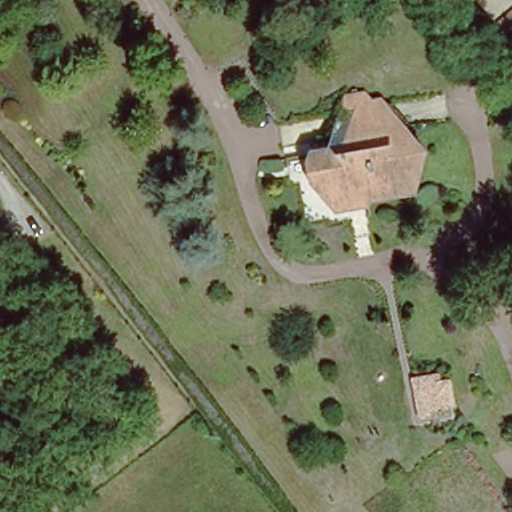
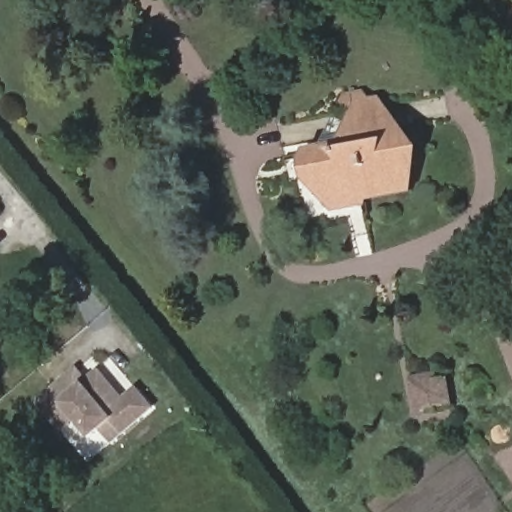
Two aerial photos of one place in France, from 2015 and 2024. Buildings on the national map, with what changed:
unchanged [(512,23),(505,30),(497,21),(512,9),(512,23)]
unchanged [(326,170),(315,173),(310,149),(330,145),(345,100),(380,93),(404,119),(410,147),(413,146),(417,162),(413,163),(418,183),(398,187),(399,190),(372,195),(373,197),(339,203),(326,170)]
new [(104,431),(92,440),(76,420),(61,432),(36,402),(79,366),(89,378),(102,367),(125,397),(139,386),(157,410),(114,445),(104,431)]
unchanged [(410,378),(442,372),(446,400),(415,406),(410,378)]

